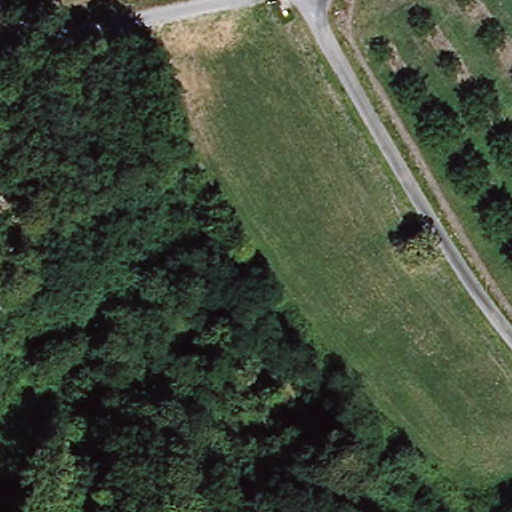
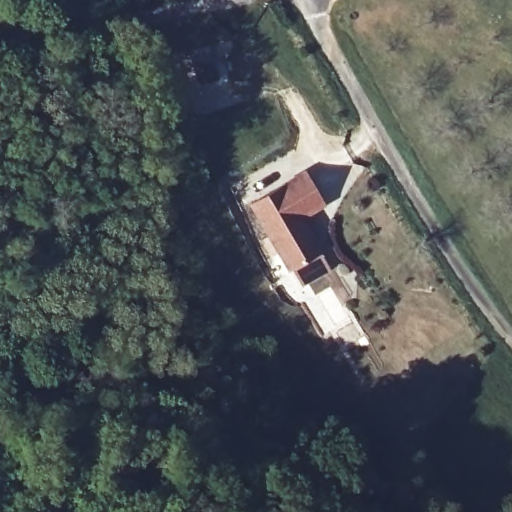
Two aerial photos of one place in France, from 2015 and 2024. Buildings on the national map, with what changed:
unchanged [(0,190),(0,156),(17,179),(0,190)]
new [(327,207),(305,220),(337,274),(300,294),(247,207),(304,170),(327,207)]

